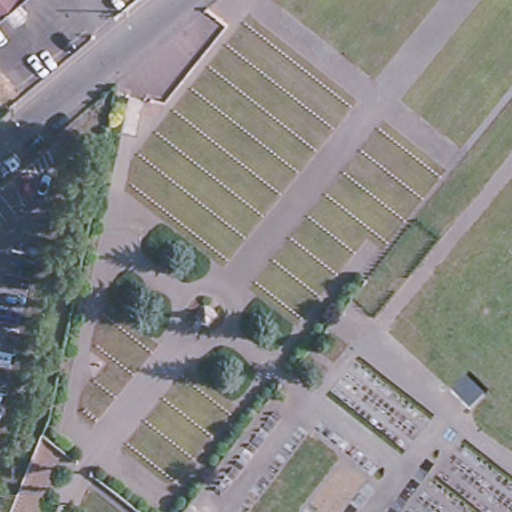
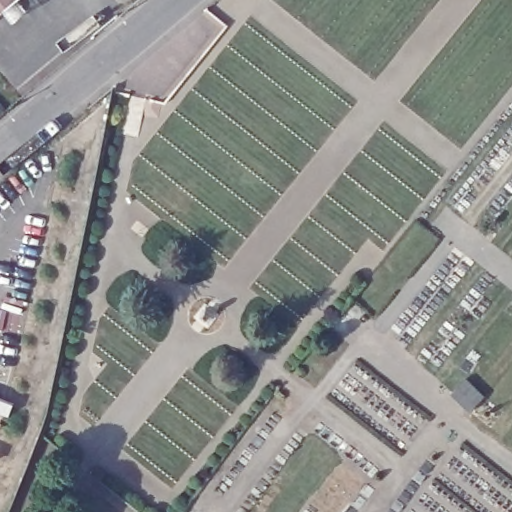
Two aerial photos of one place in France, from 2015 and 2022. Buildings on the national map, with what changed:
unchanged [(0,0),(16,0),(0,13),(0,0)]
unchanged [(365,286),(385,304),(377,311),(392,325),(381,336),(350,304),(365,286)]
unchanged [(482,399),(469,414),(451,396),(465,381),(482,399)]
unchanged [(77,472),(70,483),(60,475),(67,465),(77,472)]

